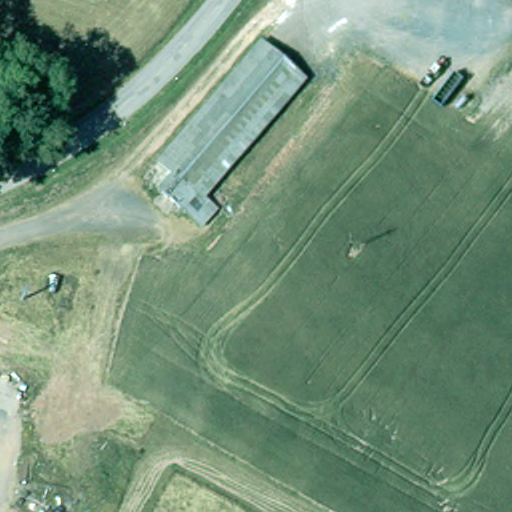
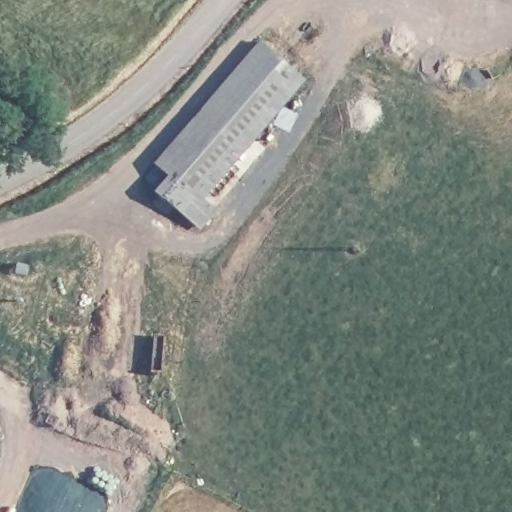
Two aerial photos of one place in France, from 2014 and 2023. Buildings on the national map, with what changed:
unchanged [(169,198),(184,181),(167,167),(186,146),(273,47),(307,77),(228,167),(188,214),(169,198)]

